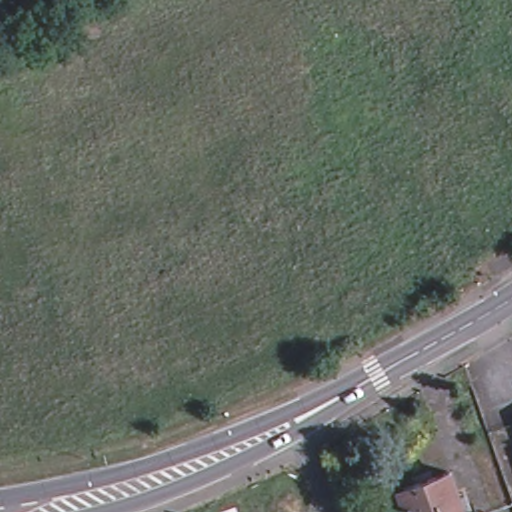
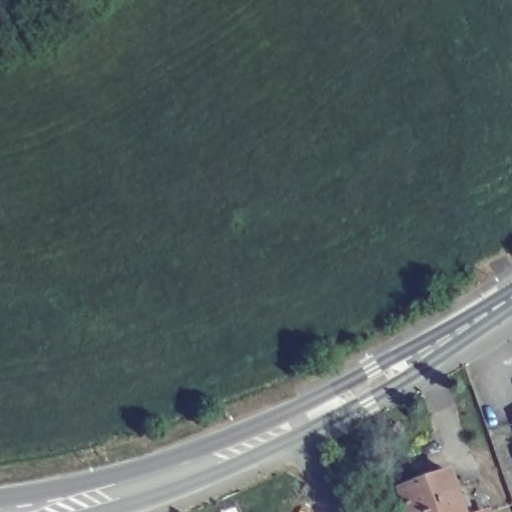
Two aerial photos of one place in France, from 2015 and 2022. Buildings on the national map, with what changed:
unchanged [(458,472),(472,512),(412,512),(404,490),(458,472)]

